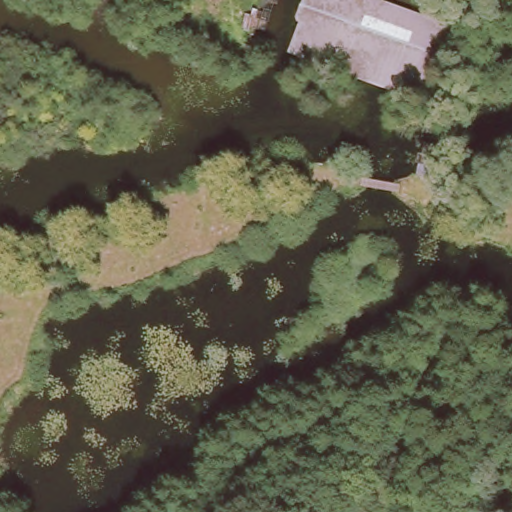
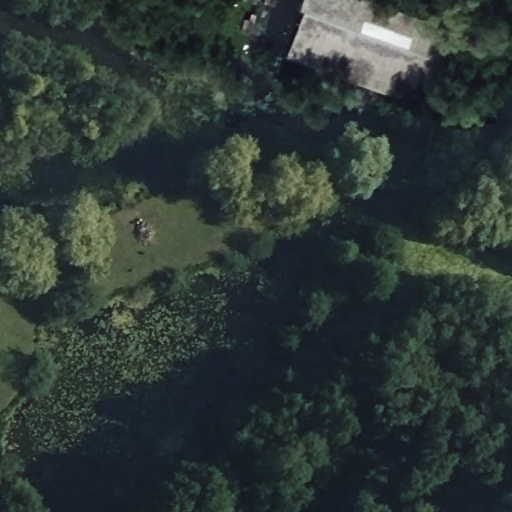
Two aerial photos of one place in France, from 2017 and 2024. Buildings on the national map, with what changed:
unchanged [(297,0),(352,0),(442,32),(415,105),(276,55),(297,0)]

